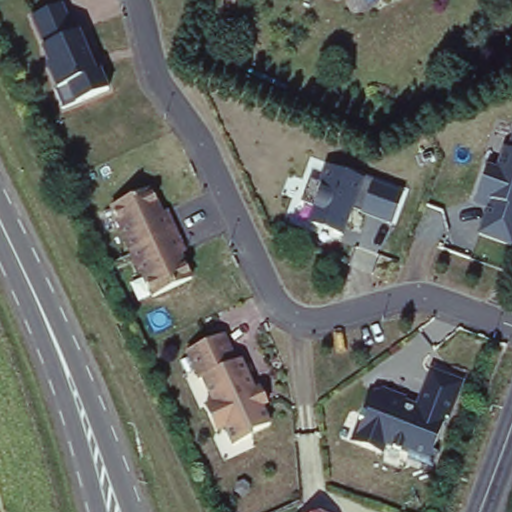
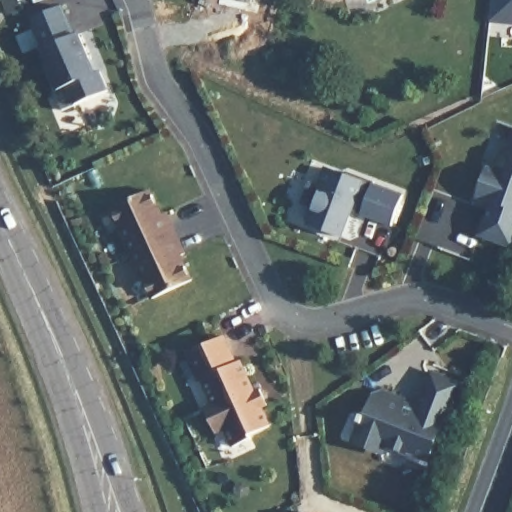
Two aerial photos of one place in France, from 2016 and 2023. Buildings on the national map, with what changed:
new [(512,26),(495,26),(496,0),(512,0),(512,26)]
unchanged [(61,7),(73,35),(77,34),(96,70),(102,71),(109,88),(62,109),(54,92),(58,88),(49,71),(52,68),(45,51),(47,48),(34,18),(61,7)]
unchanged [(510,130),(512,130),(512,253),(482,245),(493,210),(475,203),(485,170),(495,175),(510,130)]
unchanged [(307,181),(318,184),(323,167),(370,183),(402,194),(392,225),(355,211),(344,239),(308,225),(312,210),(301,202),(307,181)]
unchanged [(109,208),(150,191),(190,282),(149,302),(109,208)]
unchanged [(272,426),(236,451),(224,431),(214,437),(202,415),(212,408),(187,357),(223,339),(272,426)]
unchanged [(433,456),(388,439),(386,443),(358,433),(375,386),(420,403),(432,367),(464,378),(433,456)]
unchanged [(327,512),(316,512),(321,510),(327,512)]

